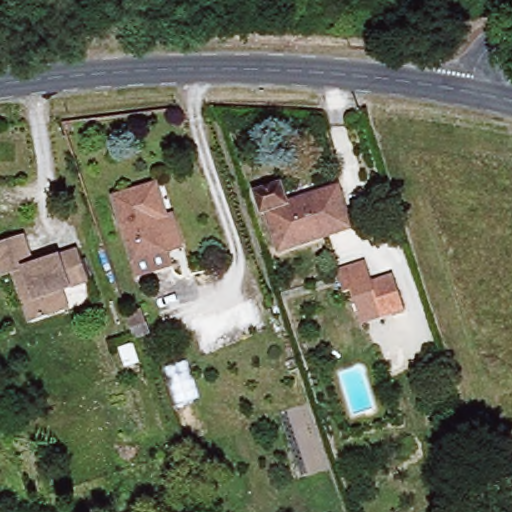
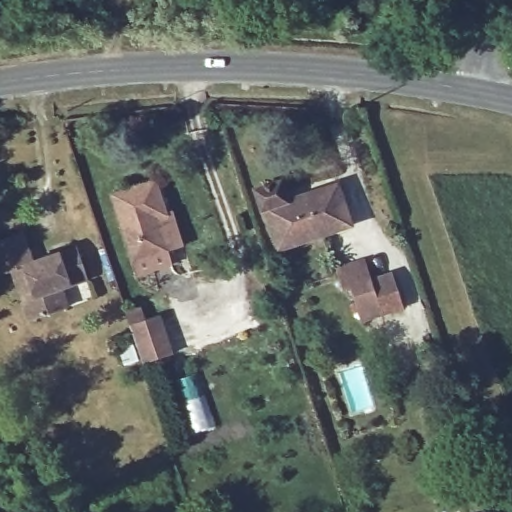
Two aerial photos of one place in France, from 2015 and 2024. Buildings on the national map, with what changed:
unchanged [(349,225),(279,248),(266,209),(263,210),(256,187),(279,179),(287,200),(335,185),(349,225)]
unchanged [(182,247),(162,253),(128,263),(107,196),(151,183),(163,219),(172,217),(182,247)]
unchanged [(0,272),(0,237),(16,231),(26,263),(34,261),(46,257),(74,249),(84,279),(56,290),(61,307),(22,319),(17,300),(7,270),(0,272)]
unchanged [(347,289),(342,291),(335,273),(330,260),(355,251),(359,263),(366,284),(382,278),(393,313),(361,324),(347,289)]
new [(124,313),(140,308),(145,321),(160,316),(173,354),(141,365),(140,361),(124,366),(118,350),(134,344),(127,318),(124,313)]

